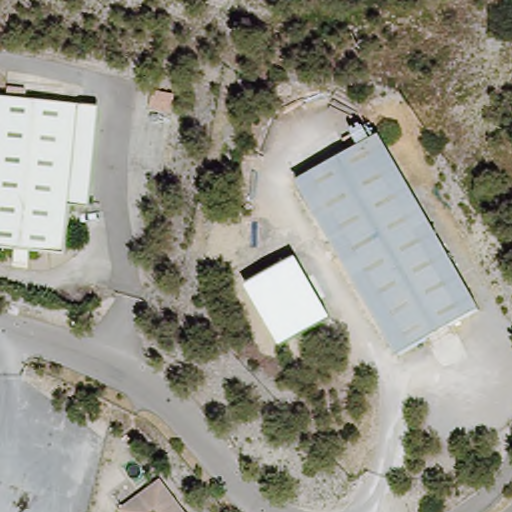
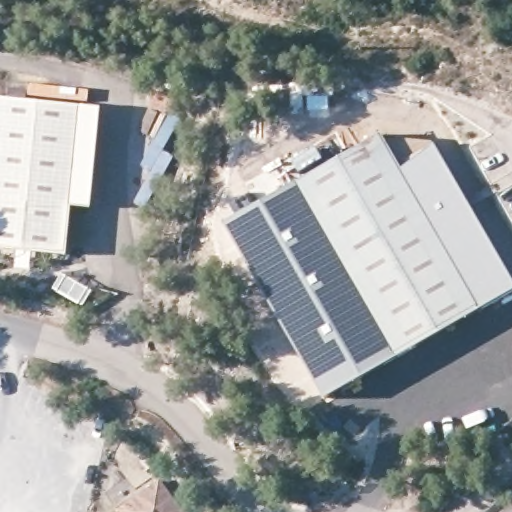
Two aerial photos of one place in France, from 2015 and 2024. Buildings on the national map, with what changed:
unchanged [(67,258),(0,252),(0,102),(81,111),(71,209),(67,258)]
unchanged [(100,113),(90,210),(71,209),(81,111),(100,113)]
new [(147,147),(167,114),(178,119),(162,149),(173,155),(162,177),(140,165),(147,147)]
unchanged [(486,327),(404,375),(293,178),(373,132),(486,327)]
new [(512,277),(512,292),(477,311),(375,135),(378,132),(383,140),(435,144),(512,277)]
new [(296,183),(395,360),(325,400),(225,225),(296,183)]
unchanged [(160,482),(183,512),(123,512),(121,510),(160,482)]

